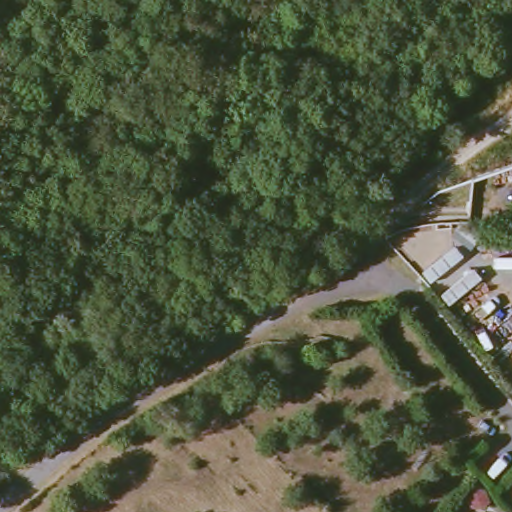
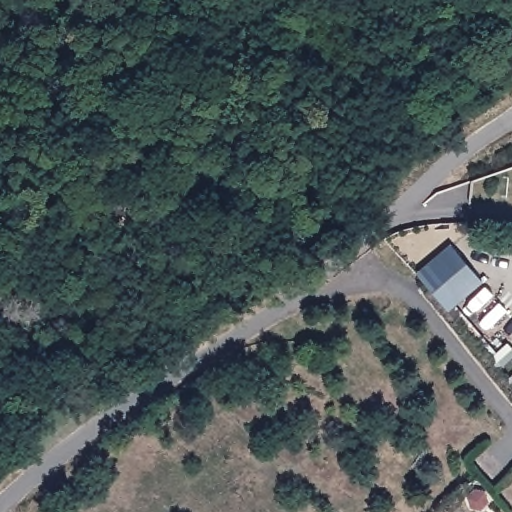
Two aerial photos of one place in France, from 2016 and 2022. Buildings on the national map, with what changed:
new [(481,280),(448,310),(415,271),(450,242),(481,280)]

